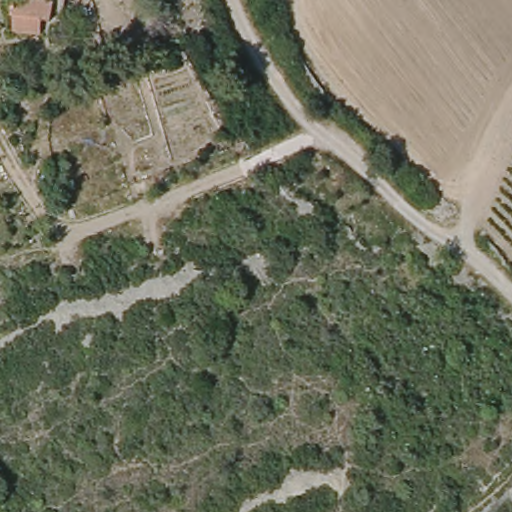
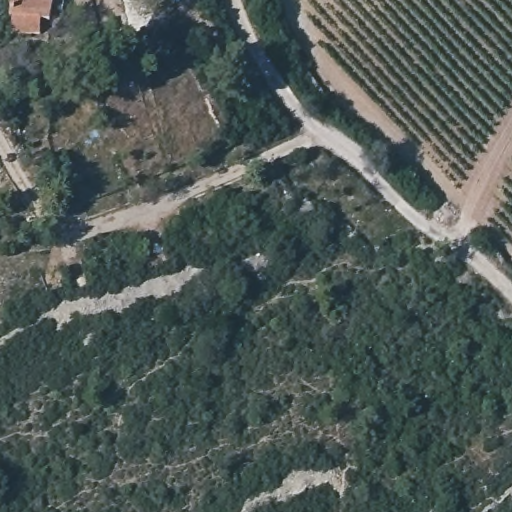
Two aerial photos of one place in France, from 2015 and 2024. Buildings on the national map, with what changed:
unchanged [(14,20),(18,0),(65,0),(60,28),(14,20)]

